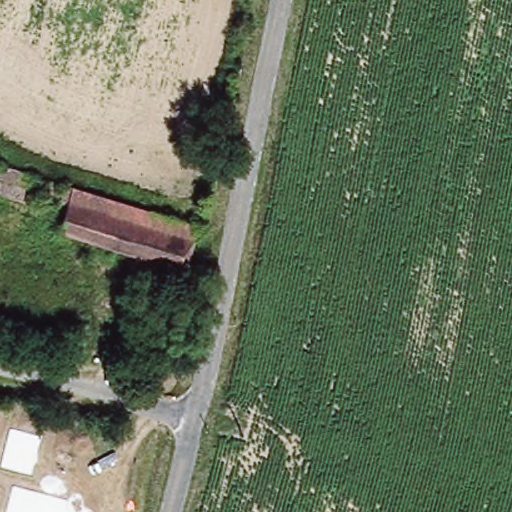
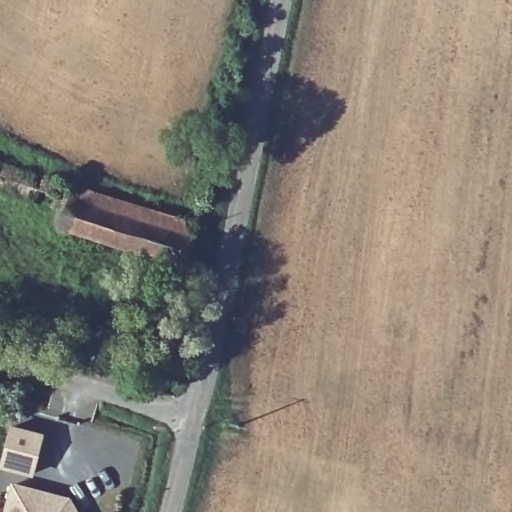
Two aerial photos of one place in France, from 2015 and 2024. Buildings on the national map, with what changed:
unchanged [(72,234),(59,228),(63,213),(69,191),(197,224),(185,265),(72,234)]
new [(37,435),(28,474),(0,467),(0,458),(7,428),(37,435)]
new [(69,498),(77,512),(5,512),(12,485),(69,498)]

